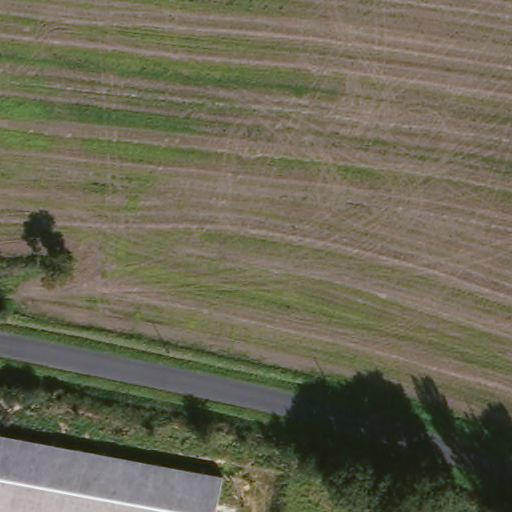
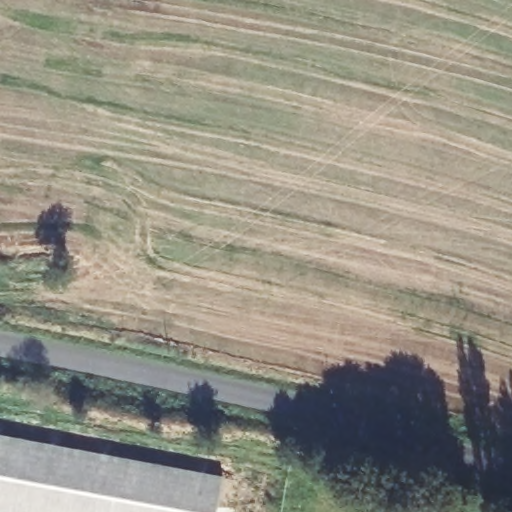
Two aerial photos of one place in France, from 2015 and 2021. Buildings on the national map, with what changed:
unchanged [(203,476),(198,512),(0,512),(0,440),(203,476)]

